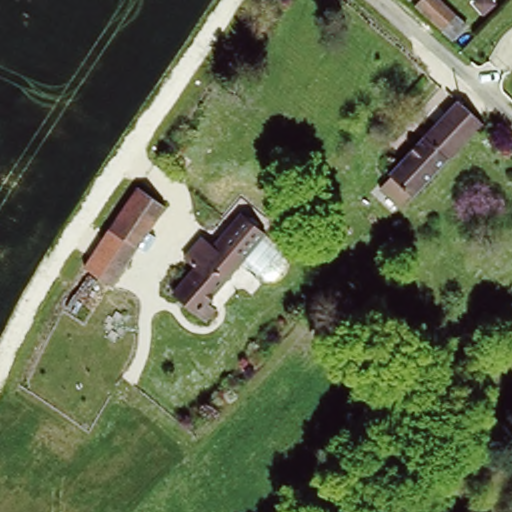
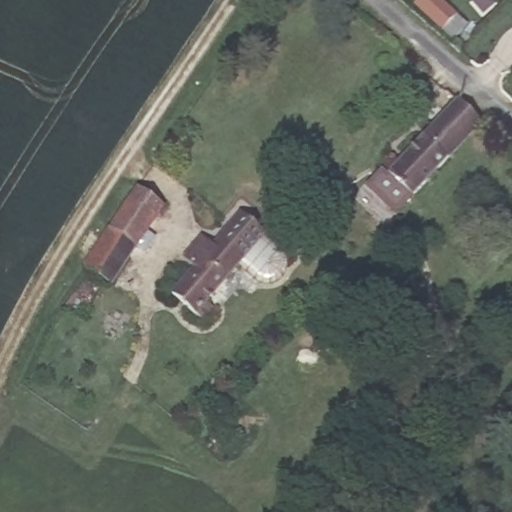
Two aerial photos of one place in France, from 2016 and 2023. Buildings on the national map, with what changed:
unchanged [(418,5),(423,0),(443,0),(473,25),(460,40),(418,5)]
unchanged [(382,192),(390,182),(388,180),(455,107),(479,127),(411,201),(409,199),(400,208),(382,192)]
unchanged [(111,225),(144,182),(170,201),(137,244),(111,225)]
unchanged [(201,267),(190,259),(207,236),(220,246),(246,212),(272,232),(271,233),(246,264),(214,304),(222,310),(215,320),(180,294),(201,267)]
unchanged [(111,225),(137,244),(109,280),(83,261),(111,225)]
unchanged [(246,264),(271,233),(288,251),(288,256),(290,259),(290,263),(290,267),(287,276),(284,280),(281,283),(275,286),(268,287),(262,286),(262,282),(246,264)]

